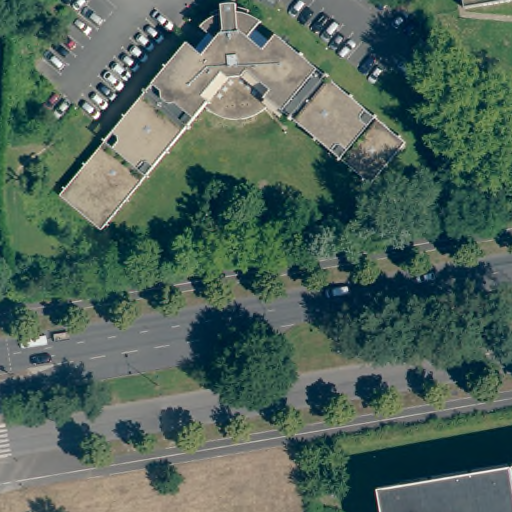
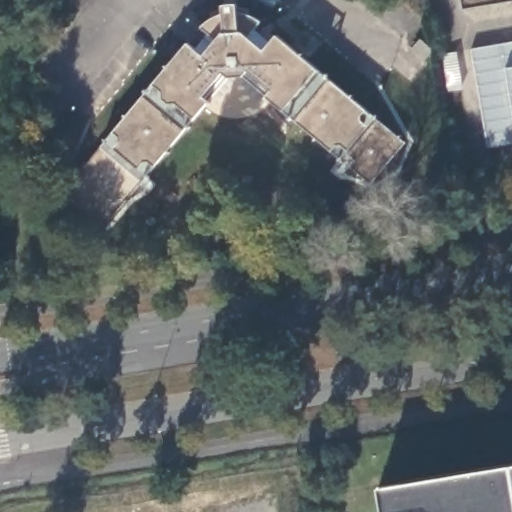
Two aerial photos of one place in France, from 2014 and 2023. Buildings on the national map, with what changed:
unchanged [(205,15),(212,8),(210,6),(221,0),(245,0),(250,2),(249,6),(261,13),(255,20),(270,34),(276,27),(405,135),(370,176),(271,93),(266,99),(259,104),(251,107),(245,109),(236,111),(230,112),(224,110),(217,107),(205,97),(100,222),(59,187),(187,34),(195,41),(207,26),(200,19),(205,15)]
unchanged [(463,0),(512,0),(512,1),(464,9),(463,0)]
unchanged [(411,50),(420,40),(432,51),(425,61),(411,50)]
new [(512,144),(487,148),(471,50),(512,43),(512,144)]
unchanged [(512,512),(383,512),(380,493),(512,471),(512,512)]

